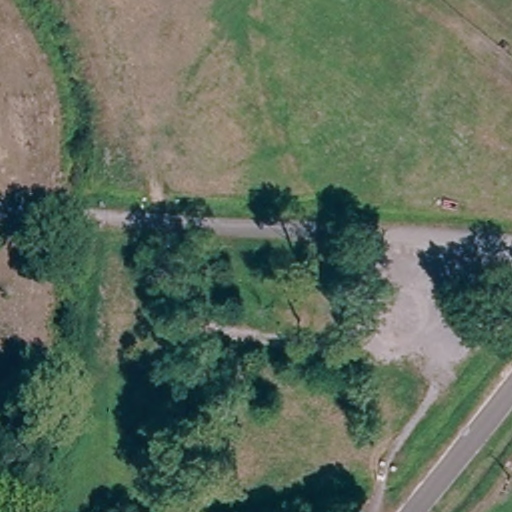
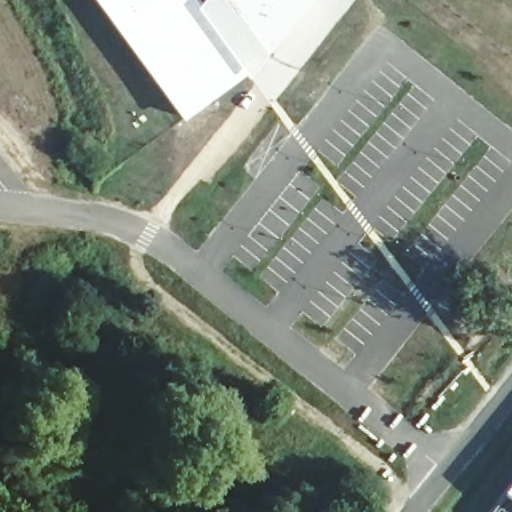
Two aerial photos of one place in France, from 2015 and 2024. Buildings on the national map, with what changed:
new [(201,6),(206,0),(315,0),(268,59),(250,77),(183,121),(93,0),(196,0),(201,6)]
new [(492,512),(504,494),(512,484),(512,512),(492,512)]

